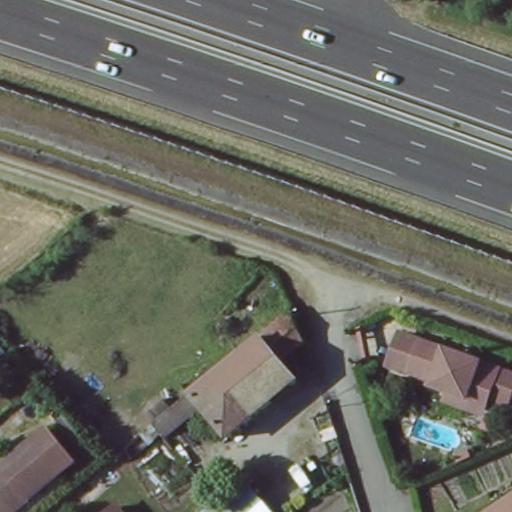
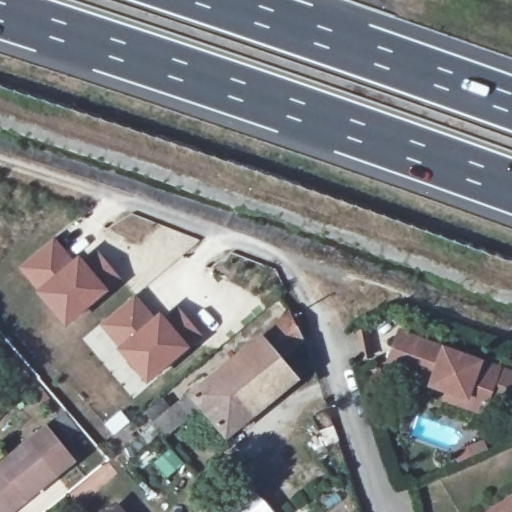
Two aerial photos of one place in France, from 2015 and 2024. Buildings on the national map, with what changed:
new [(56,238),(75,260),(78,257),(84,263),(98,252),(123,281),(109,291),(66,327),(36,292),(38,291),(20,268),(56,238)]
new [(135,295),(155,317),(160,313),(190,347),(147,384),(117,349),(99,325),(135,295)]
unchanged [(192,391),(193,393),(291,314),(304,343),(281,362),(298,382),(227,439),(201,407),(162,438),(151,424),(192,391)]
unchanged [(442,394),(445,386),(430,380),(432,374),(410,367),(388,358),(401,327),(422,334),(501,364),(486,404),(484,410),(442,394)]
unchanged [(83,434),(66,448),(78,466),(25,512),(0,512),(0,463),(66,412),(83,434)]
unchanged [(269,512),(199,512),(240,475),(269,512)]
unchanged [(512,502),(512,512),(497,512),(512,502)]
unchanged [(119,503),(126,512),(109,512),(119,503)]

